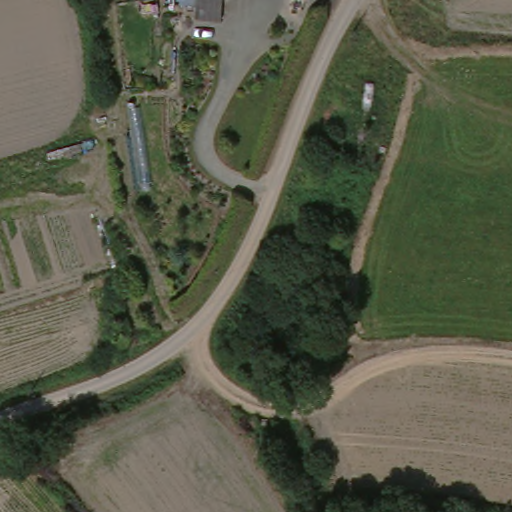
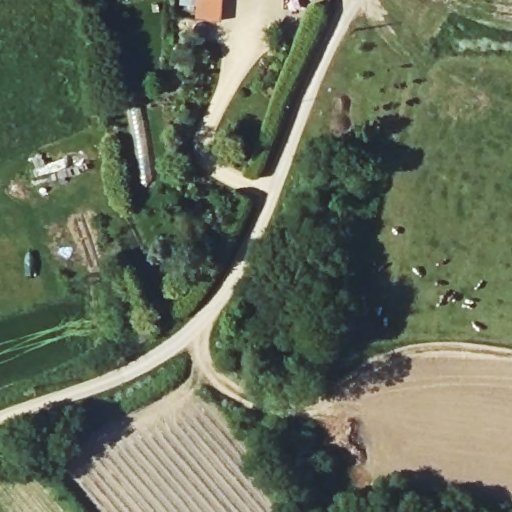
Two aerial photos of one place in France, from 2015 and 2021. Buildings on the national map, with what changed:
unchanged [(194,21),(193,0),(220,0),(221,20),(194,21)]

